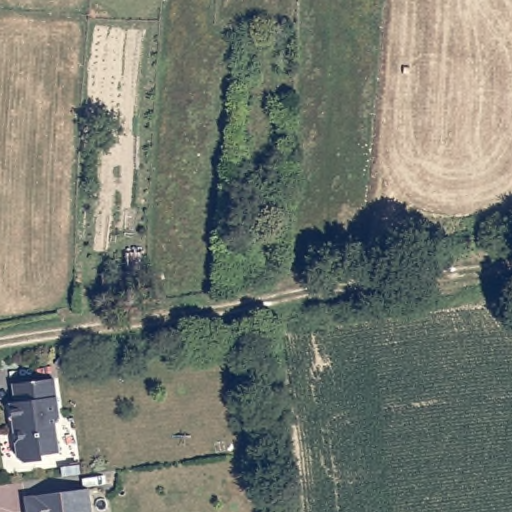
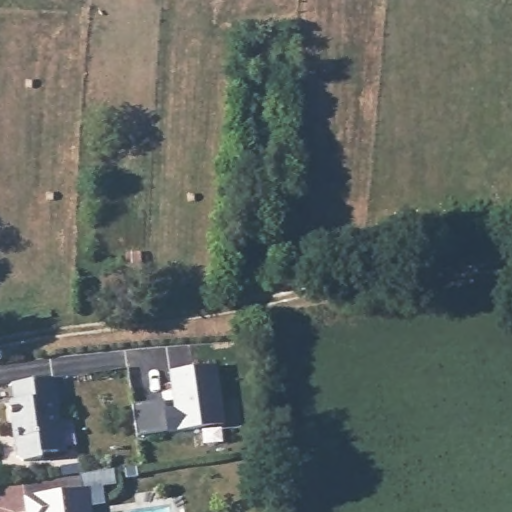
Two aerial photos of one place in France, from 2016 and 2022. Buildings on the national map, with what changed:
unchanged [(139,252),(141,285),(102,290),(101,273),(123,273),(124,253),(139,252)]
new [(164,401),(165,409),(174,408),(169,372),(216,366),(224,425),(137,437),(133,405),(164,401)]
unchanged [(53,381),(58,421),(53,426),(56,455),(39,457),(40,462),(21,464),(16,459),(9,405),(14,404),(12,386),(53,381)]
unchanged [(93,512),(28,512),(27,500),(90,493),(93,512)]

